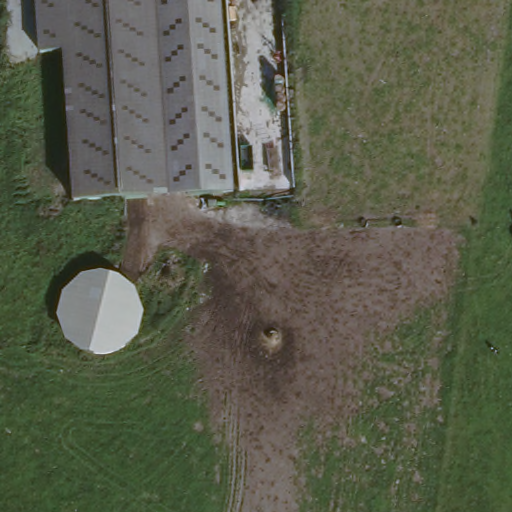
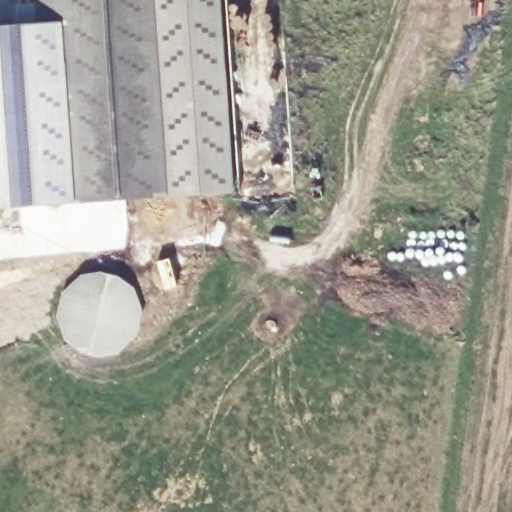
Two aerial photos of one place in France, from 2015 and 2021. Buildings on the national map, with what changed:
unchanged [(231,199),(214,200),(71,207),(64,56),(39,58),(37,0),(221,0),(227,110),(231,199)]
new [(0,27),(38,25),(39,58),(64,56),(71,207),(0,209),(0,27)]
new [(120,276),(136,291),(144,313),(140,335),(119,353),(101,357),(82,353),(66,343),(57,317),(64,292),(82,277),(100,272),(120,276)]

